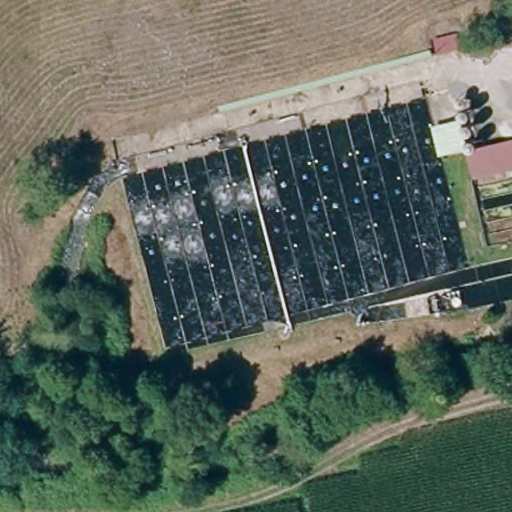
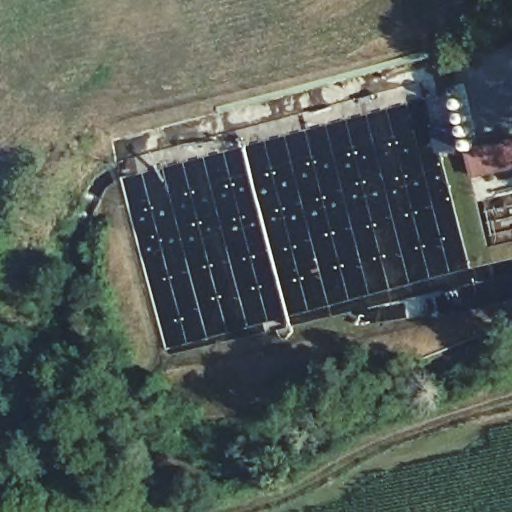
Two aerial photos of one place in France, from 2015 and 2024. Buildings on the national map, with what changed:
unchanged [(470,176),(448,96),(461,92),(471,150),(512,140),(512,170),(470,176)]

